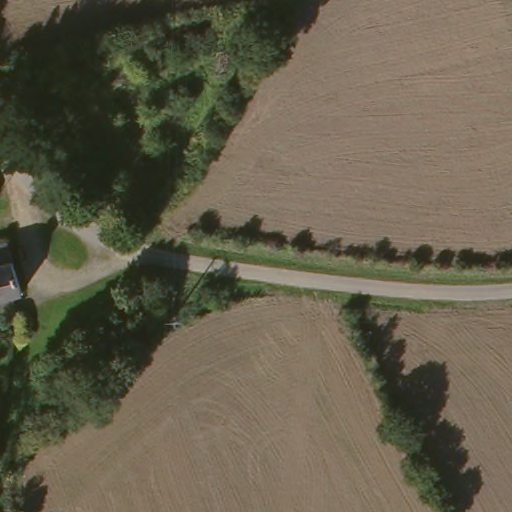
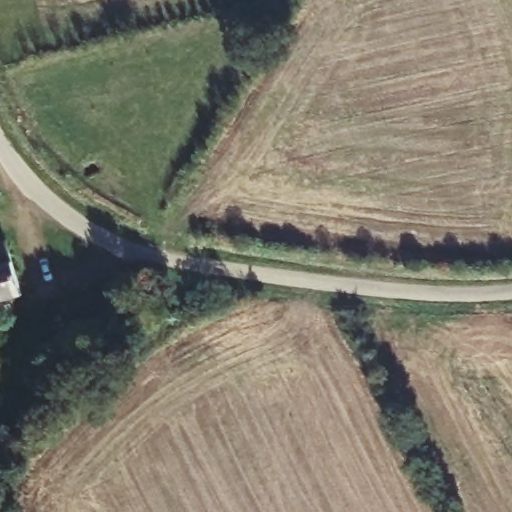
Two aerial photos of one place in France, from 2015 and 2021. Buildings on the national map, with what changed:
unchanged [(0,307),(0,248),(1,247),(19,302),(8,305),(0,307)]

